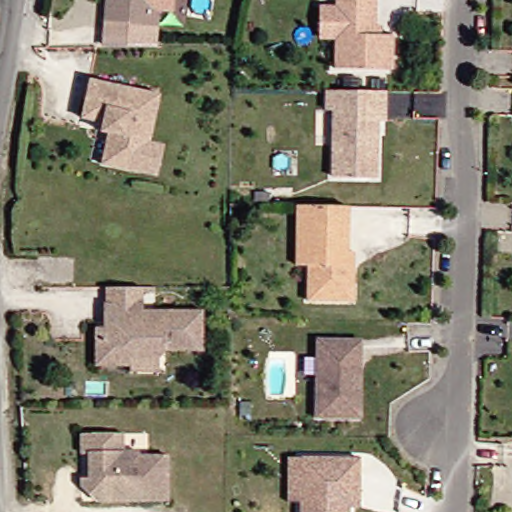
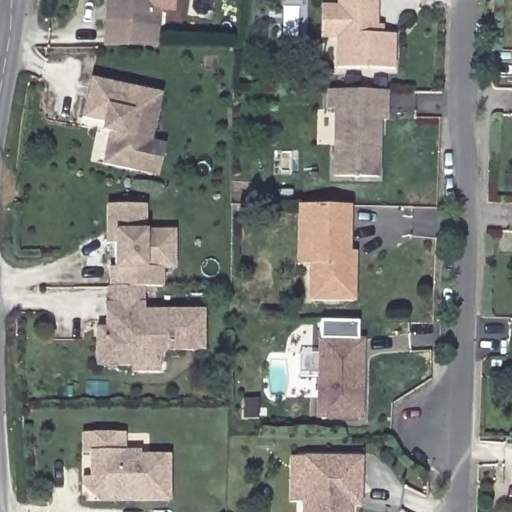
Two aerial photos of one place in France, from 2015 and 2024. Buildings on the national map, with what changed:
unchanged [(171,10),(157,10),(156,26),(105,22),(106,0),(172,0),(171,10)]
unchanged [(373,26),(380,26),(380,35),(391,35),(391,70),(332,68),(333,37),(318,37),(318,6),(333,7),(333,0),(373,0),(373,26)]
unchanged [(136,170),(105,163),(110,142),(111,131),(105,130),(106,121),(85,117),(92,79),(162,93),(152,142),(146,171),(136,170)]
unchanged [(384,94),(383,112),(383,122),(376,122),(375,179),(331,178),(332,111),(325,111),(325,92),(351,92),(384,94)]
new [(110,288),(109,268),(114,268),(114,245),(106,245),(106,206),(146,206),(146,230),(176,230),(176,270),(162,270),(162,288),(145,289),(110,288)]
unchanged [(353,267),(352,305),(295,303),(295,266),(283,266),(284,207),(296,207),(347,209),(347,255),(353,255),(353,267)]
unchanged [(127,374),(128,367),(96,366),(97,337),(97,328),(106,328),(107,304),(109,304),(110,288),(145,289),(145,312),(205,315),(204,355),(166,354),(165,375),(127,374)]
unchanged [(318,415),(318,351),(318,338),(360,338),(360,351),(361,415),(318,415)]
unchanged [(88,485),(88,478),(96,478),(96,452),(89,452),(89,433),(131,433),(131,451),(146,452),(146,456),(175,457),(175,502),(138,501),(104,500),(88,485)]
unchanged [(355,507),(354,512),(306,512),(306,502),(293,501),(295,456),(307,456),(366,458),(365,475),(365,507),(355,507)]

